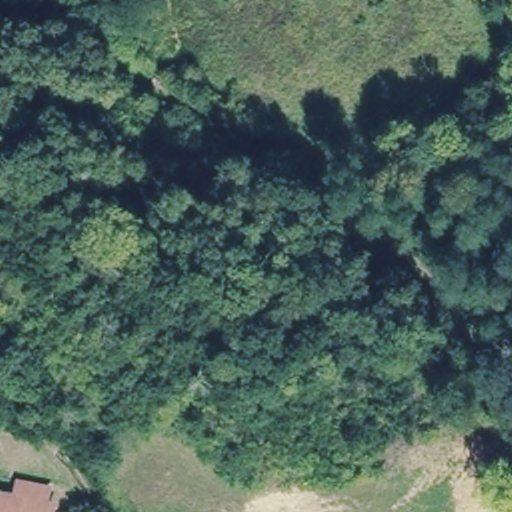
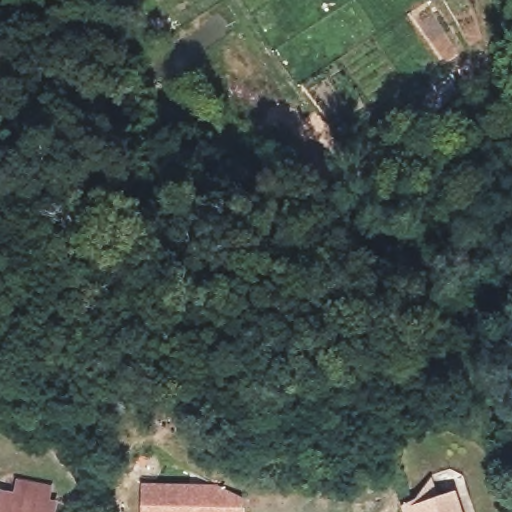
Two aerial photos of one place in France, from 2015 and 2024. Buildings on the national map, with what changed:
new [(438,497),(456,491),(463,512),(402,512),(400,505),(413,499),(431,477),(438,497)]
unchanged [(0,490),(7,492),(10,479),(39,485),(36,499),(44,501),(41,512),(0,512),(0,490)]
new [(191,489),(217,489),(217,486),(242,499),(242,512),(145,512),(145,488),(191,489)]

